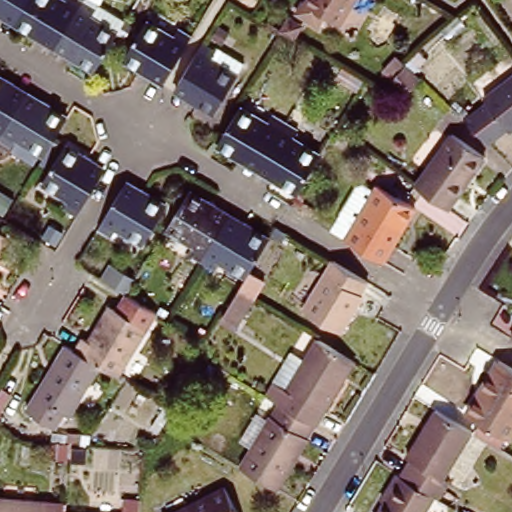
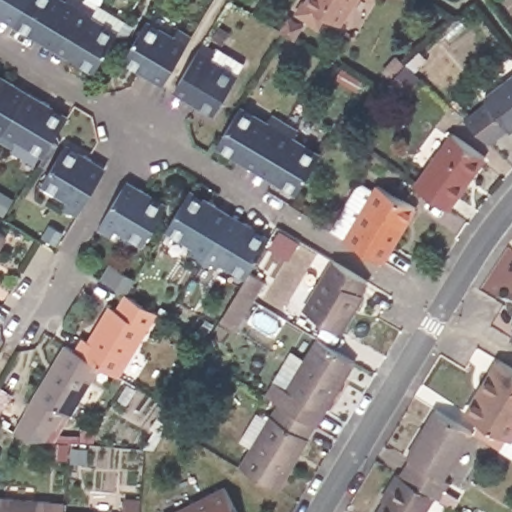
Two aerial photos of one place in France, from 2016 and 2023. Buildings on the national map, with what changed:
unchanged [(0,18),(0,0),(28,0),(15,22),(12,25),(0,18)]
unchanged [(30,36),(32,32),(15,22),(28,0),(60,0),(63,2),(64,0),(76,0),(81,2),(52,50),(35,40),(30,36)]
unchanged [(330,19),(323,30),(302,17),(309,5),(311,6),(315,0),(363,0),(346,27),(330,19)]
unchanged [(77,60),(75,63),(68,60),(52,50),(81,2),(95,10),(97,5),(123,21),(95,70),(77,60)]
unchanged [(261,20),(268,6),(282,14),(274,27),(261,20)]
unchanged [(138,71),(140,68),(123,59),(144,25),(169,40),(175,30),(188,38),(160,85),(138,71)]
unchanged [(233,79),(212,112),(195,102),(194,105),(171,91),(200,45),(212,53),(215,49),(240,65),(232,77),(233,79)]
unchanged [(387,81),(392,76),(405,64),(420,79),(408,91),(403,95),(387,81)]
unchanged [(505,124),(487,138),(463,115),(485,97),(482,94),(512,71),(512,123),(508,126),(505,124)]
unchanged [(5,74),(9,77),(26,86),(0,131),(0,74),(3,76),(5,74)]
unchanged [(20,156),(0,144),(0,131),(26,86),(43,96),(49,100),(47,104),(65,114),(42,150),(29,141),(20,156)]
unchanged [(237,160),(230,156),(232,154),(216,145),(237,107),(264,123),(268,115),(283,124),(255,170),(237,160)]
unchanged [(278,182),(277,185),(271,181),(255,170),(283,124),(295,130),(290,140),(317,155),(295,192),(278,182)]
unchanged [(415,185),(451,134),(483,157),(447,207),(415,185)]
unchanged [(66,200),(71,191),(45,175),(66,140),(85,150),(85,149),(92,152),(109,163),(81,209),(66,200)]
unchanged [(143,242),(115,226),(110,235),(98,226),(125,180),(142,190),(148,194),(147,196),(164,207),(143,242)]
unchanged [(343,229),(368,186),(375,185),(386,192),(390,185),(427,207),(395,261),(343,229)]
unchanged [(186,253),(191,245),(165,228),(186,192),(203,202),(205,199),(212,203),(230,214),(200,261),(186,253)]
unchanged [(237,290),(245,275),(218,260),(212,268),(200,261),(230,214),(246,223),(251,226),(250,230),(267,240),(249,270),(263,280),(251,299),(235,325),(221,316),(237,290)]
unchanged [(0,240),(0,232),(3,235),(0,240)]
unchanged [(361,294),(338,331),(301,310),(332,261),(365,280),(358,291),(361,294)]
unchanged [(105,390),(88,380),(63,365),(70,352),(75,356),(97,320),(104,325),(113,308),(94,296),(102,283),(123,296),(115,310),(143,326),(105,390)]
unchanged [(510,339),(512,337),(512,340),(510,339)]
unchanged [(284,404),(270,396),(277,382),(291,390),(322,339),(358,361),(319,425),(284,404)]
unchanged [(43,441),(15,424),(22,410),(41,382),(54,360),(63,365),(88,380),(57,430),(52,426),(43,441)]
unchanged [(493,445),(473,433),(480,422),(465,413),(497,360),(512,368),(512,430),(507,438),(500,450),(493,445)]
unchanged [(245,467),(284,404),(319,425),(280,489),(245,467)]
unchanged [(447,483),(437,498),(433,496),(397,475),(407,459),(405,457),(433,410),(471,432),(442,480),(447,483)]
unchanged [(385,502),(381,500),(397,475),(433,496),(424,512),(379,512),(385,502)]
unchanged [(222,486),(235,512),(171,512),(222,486)]
unchanged [(0,497),(63,502),(63,512),(0,512),(0,497)]
unchanged [(122,503),(123,498),(138,500),(138,505),(137,512),(122,512),(122,503)]

